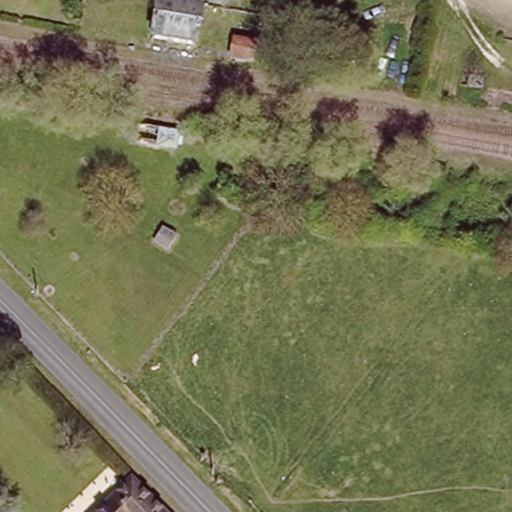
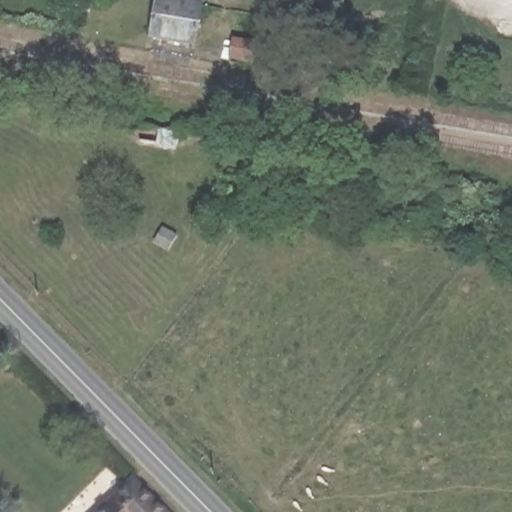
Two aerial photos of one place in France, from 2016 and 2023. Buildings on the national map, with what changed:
unchanged [(196,43),(156,35),(162,0),(184,0),(203,4),(196,43)]
unchanged [(345,19),(306,14),(308,0),(348,0),(345,19)]
unchanged [(257,41),(254,60),(234,56),(237,38),(257,41)]
unchanged [(485,75),(483,86),(470,85),(472,74),(485,75)]
unchanged [(141,138),(142,125),(137,124),(140,106),(186,115),(183,132),(180,131),(175,130),(174,144),(141,138)]
unchanged [(182,230),(173,242),(160,232),(169,220),(182,230)]
unchanged [(163,512),(98,512),(127,481),(130,478),(163,512)]

